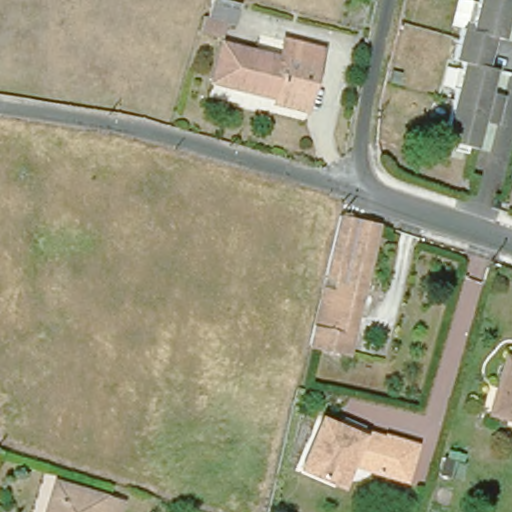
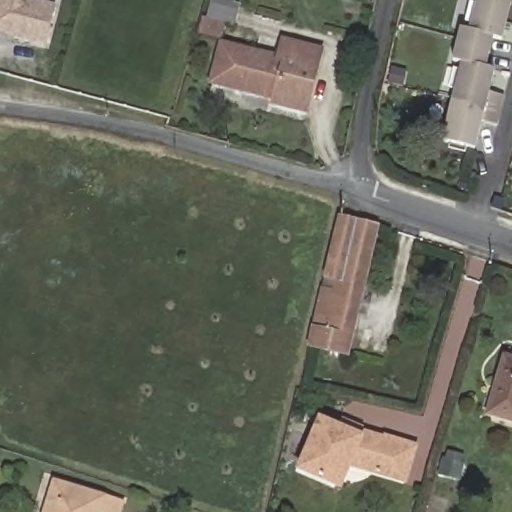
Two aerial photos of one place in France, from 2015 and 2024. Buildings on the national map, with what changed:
new [(43,0),(57,4),(46,45),(0,32),(0,0),(43,0)]
unchanged [(440,131),(453,77),(444,75),(448,59),(457,61),(459,54),(450,51),(459,19),(468,21),(471,10),(462,7),(464,0),(507,0),(499,30),(491,27),(483,59),(492,61),(487,82),(501,86),(494,116),(479,112),(472,139),(466,138),(464,146),(446,141),(448,133),(440,131)]
unchanged [(229,18),(225,34),(202,28),(206,12),(229,18)]
unchanged [(280,56),(284,39),(320,47),(316,65),(307,108),(289,103),(290,98),(213,79),(222,43),(280,56)]
unchanged [(345,220),(381,231),(347,361),(312,351),(326,295),(329,286),(345,220)]
unchanged [(512,425),(488,418),(503,362),(512,364),(512,425)]
unchanged [(408,487),(370,477),(370,469),(351,464),(342,493),(306,482),(321,432),(341,438),(344,428),(363,434),(362,438),(417,452),(408,487)]
unchanged [(51,485),(120,506),(118,512),(44,512),(51,485)]

